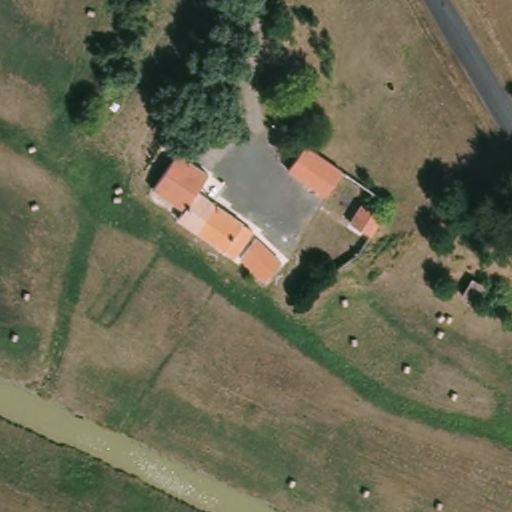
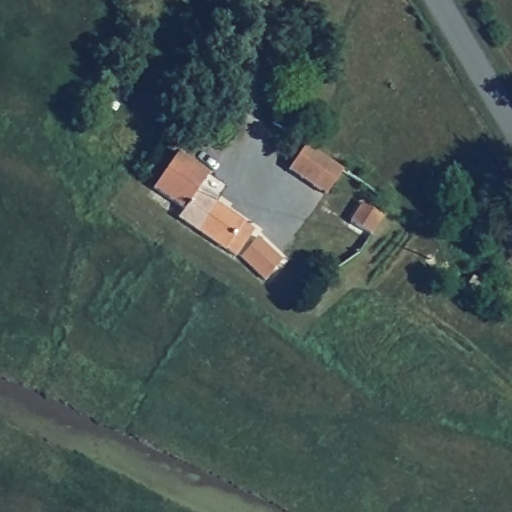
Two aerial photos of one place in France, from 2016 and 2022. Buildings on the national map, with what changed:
unchanged [(193,125),(194,113),(207,114),(206,127),(193,125)]
unchanged [(301,184),(293,180),(296,175),(310,154),(347,178),(332,203),(301,184)]
unchanged [(192,234),(198,225),(153,195),(177,159),(221,187),(209,205),(267,242),(249,272),(192,234)]
unchanged [(272,286),(251,271),(266,251),(287,267),(272,286)]

